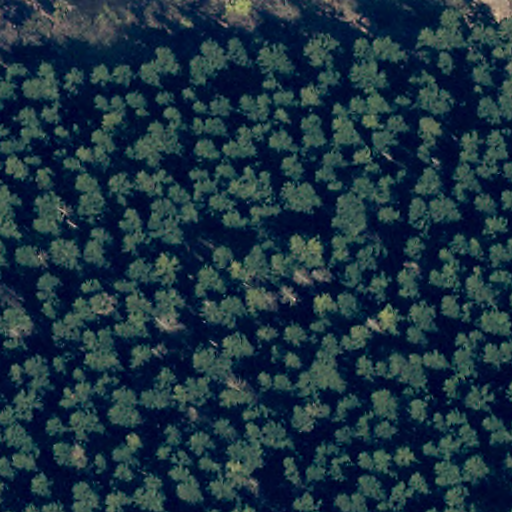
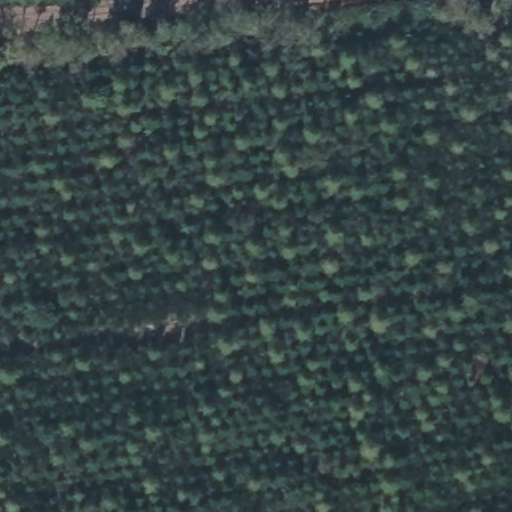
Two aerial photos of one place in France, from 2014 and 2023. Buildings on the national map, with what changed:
[]

